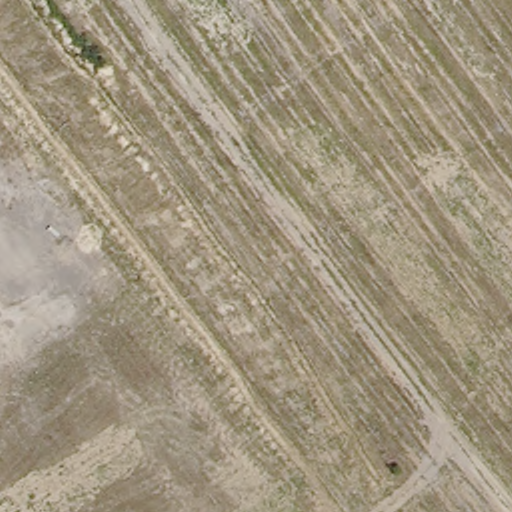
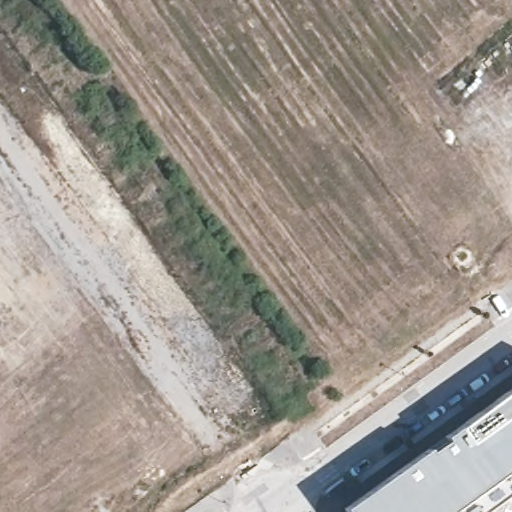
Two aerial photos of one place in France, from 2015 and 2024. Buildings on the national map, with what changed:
new [(512,512),(347,512),(345,509),(512,388),(512,512)]

